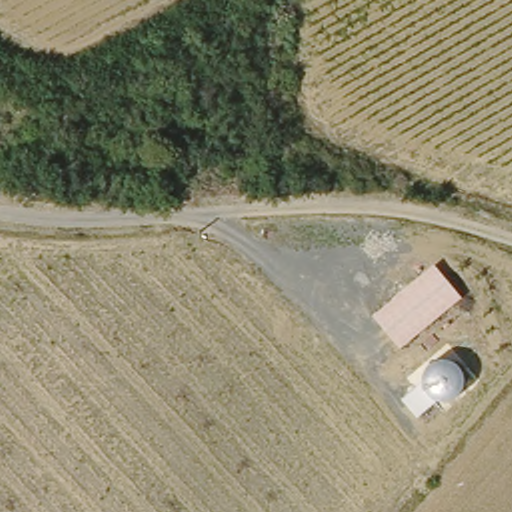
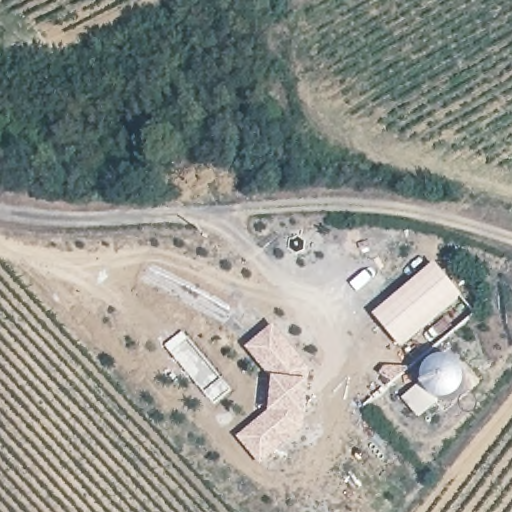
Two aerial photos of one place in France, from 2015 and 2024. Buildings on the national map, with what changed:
unchanged [(401,348),(372,315),(435,263),(462,297),(401,348)]
new [(270,407),(272,376),(264,371),(242,345),(271,321),(309,370),(311,372),(309,393),(306,419),(302,429),(291,440),(259,463),(235,435),(270,407)]
unchanged [(401,400),(424,380),(424,377),(425,371),(429,365),(434,360),(442,357),(449,357),(455,359),(459,362),(462,367),(464,371),(465,380),(464,386),(462,391),(457,396),(453,399),(445,401),(439,400),(417,418),(401,400)]

